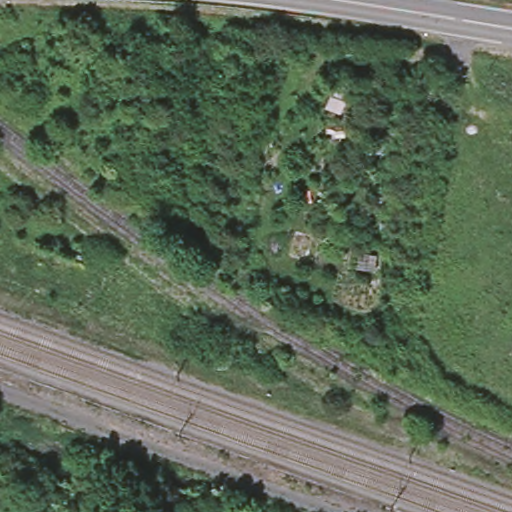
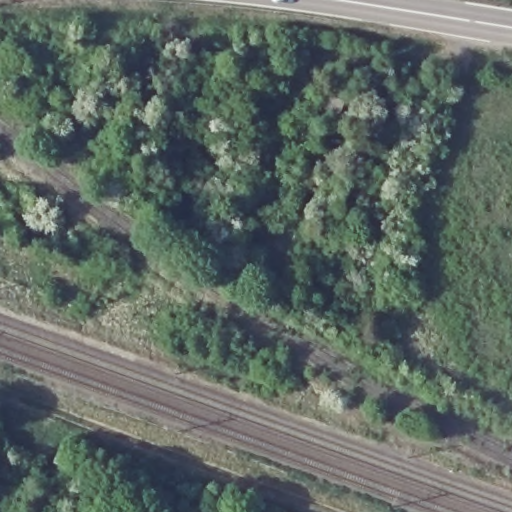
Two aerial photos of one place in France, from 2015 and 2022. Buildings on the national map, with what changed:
unchanged [(356,151),(360,132),(375,132),(373,156),(356,151)]

